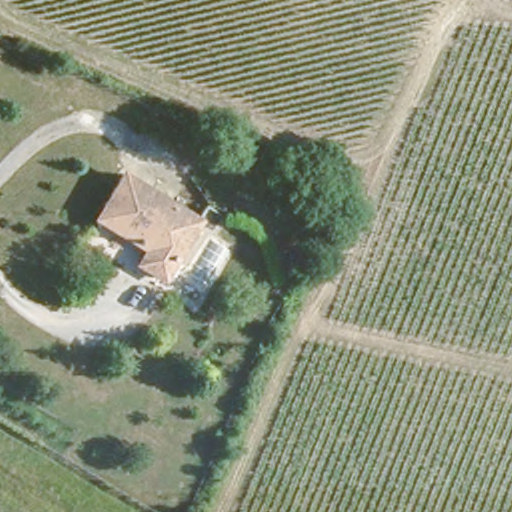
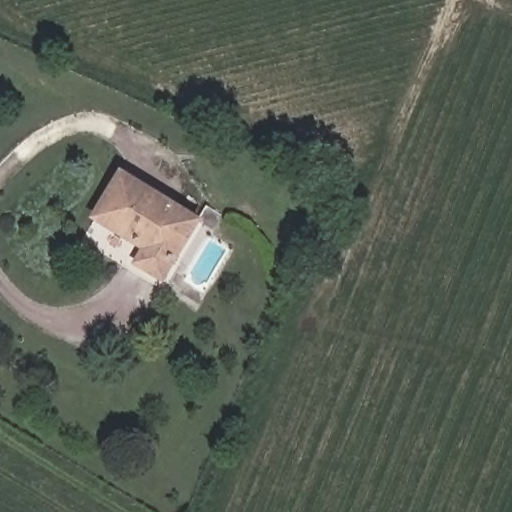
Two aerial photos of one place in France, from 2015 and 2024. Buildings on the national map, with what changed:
unchanged [(165,275),(135,256),(142,244),(92,214),(122,167),(202,215),(165,275)]

